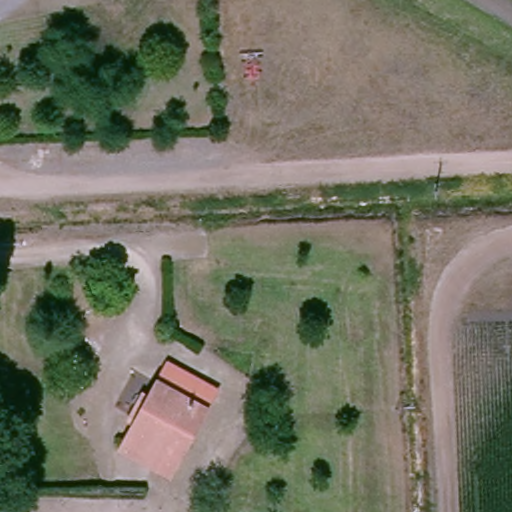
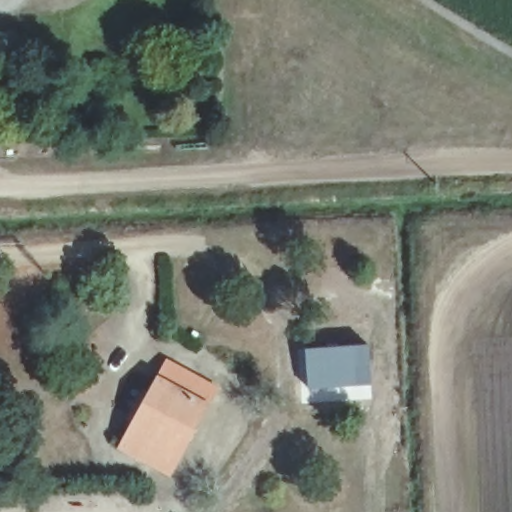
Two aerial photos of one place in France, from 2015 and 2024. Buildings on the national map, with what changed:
new [(368,343),(372,398),(345,399),(343,390),(308,393),(303,347),(368,343)]
unchanged [(125,447),(168,369),(215,396),(197,430),(188,424),(162,469),(125,447)]

